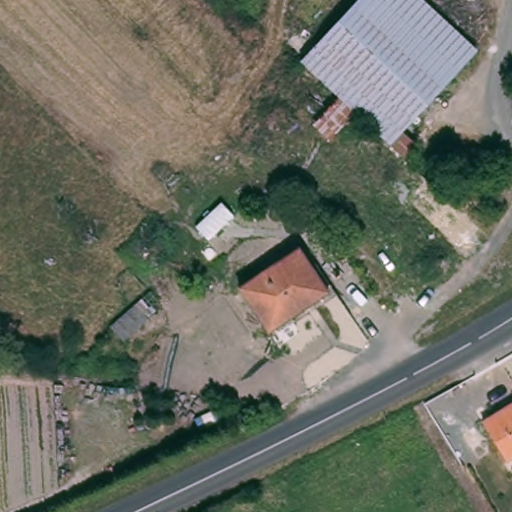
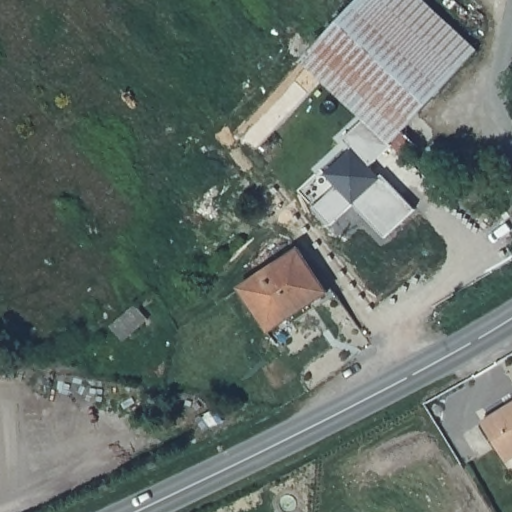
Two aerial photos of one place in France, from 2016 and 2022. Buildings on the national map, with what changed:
unchanged [(403,136),(417,148),(418,150),(406,161),(387,144),(361,121),(301,65),(360,0),(425,0),(480,52),(403,136)]
new [(330,186),(318,174),(348,147),(342,141),(361,121),(387,144),(363,166),(374,176),(376,174),(409,208),(379,236),(347,204),(324,225),(307,207),(330,186)]
unchanged [(333,296),(271,335),(239,291),(302,252),(333,296)]
unchanged [(512,461),(486,421),(512,405),(512,461)]

